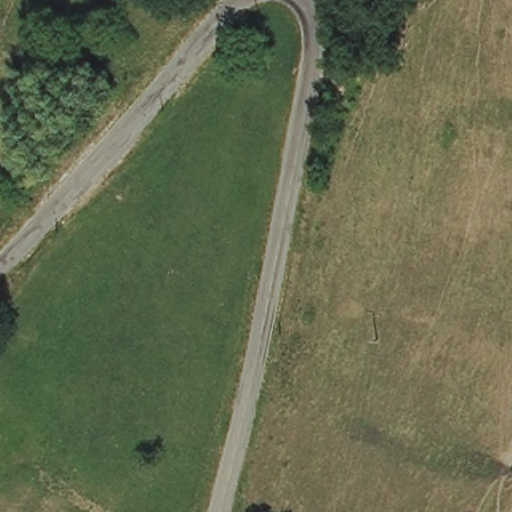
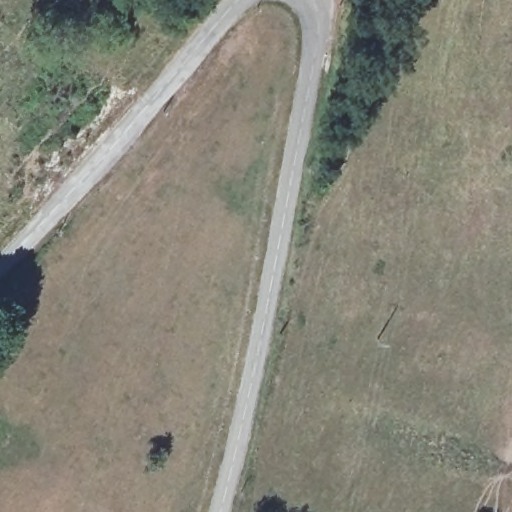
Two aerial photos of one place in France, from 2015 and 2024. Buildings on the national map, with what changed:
[]

